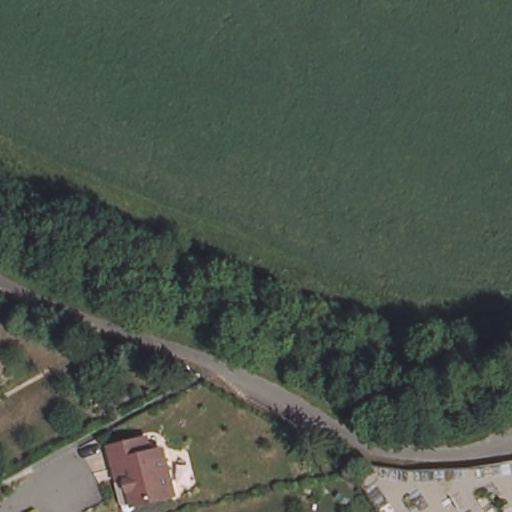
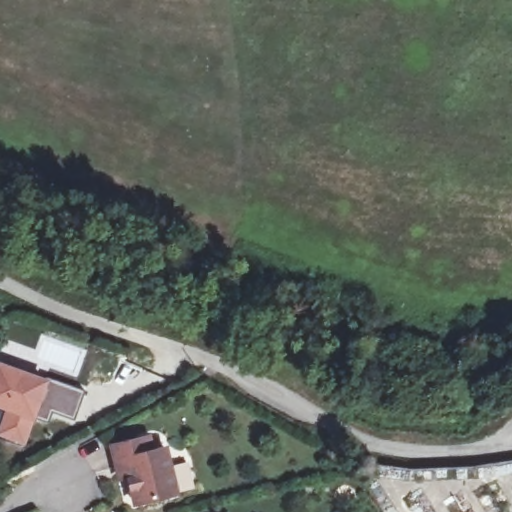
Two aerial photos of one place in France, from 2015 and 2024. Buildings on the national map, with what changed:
new [(48,378),(35,419),(25,447),(0,438),(0,419),(3,410),(0,408),(0,361),(48,378)]
new [(48,378),(84,391),(73,420),(50,412),(47,422),(35,419),(48,378)]
unchanged [(116,467),(111,445),(148,436),(152,451),(165,447),(175,493),(134,503),(127,475),(118,477),(116,467)]

